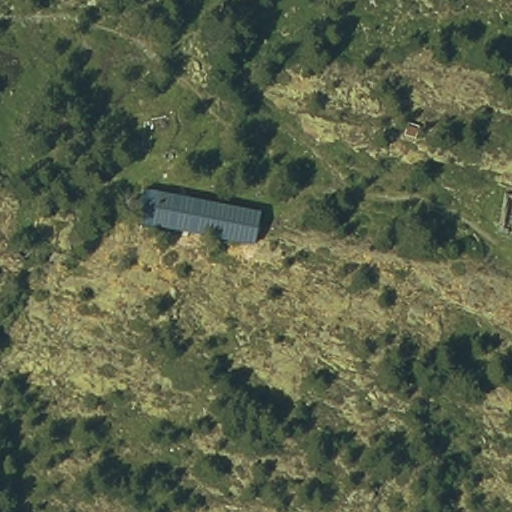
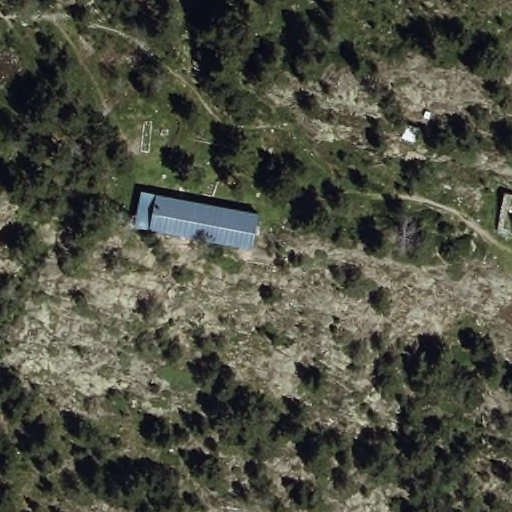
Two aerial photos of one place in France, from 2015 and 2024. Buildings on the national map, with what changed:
unchanged [(143,191),(262,215),(254,248),(136,222),(143,191)]

